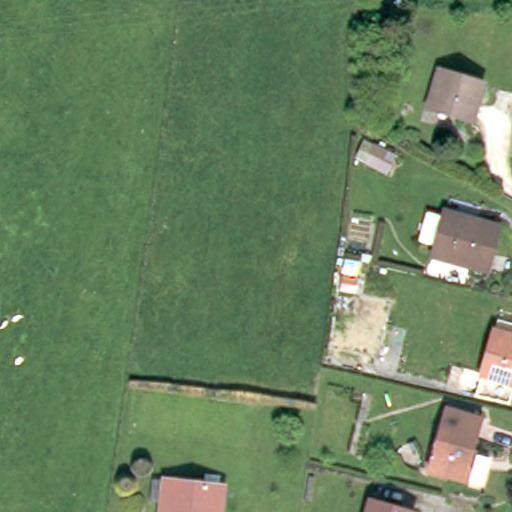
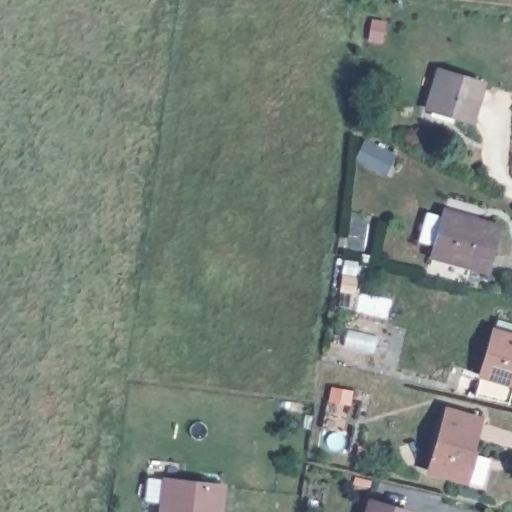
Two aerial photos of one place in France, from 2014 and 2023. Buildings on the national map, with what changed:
unchanged [(362,55),(365,34),(375,35),(372,57),(362,55)]
unchanged [(458,117),(460,111),(434,106),(440,72),(484,81),(477,120),(458,117)]
unchanged [(389,152),(378,169),(362,158),(372,141),(389,152)]
unchanged [(430,251),(433,241),(417,237),(425,209),(441,213),(442,208),(495,221),(484,263),(430,251)]
unchanged [(495,340),(512,344),(512,388),(483,381),(495,340)]
unchanged [(433,470),(450,410),(483,418),(472,454),(492,459),(485,483),(433,470)]
unchanged [(170,477),(225,481),(223,512),(168,512),(170,477)]
unchanged [(372,503),(396,512),(369,512),(372,503)]

